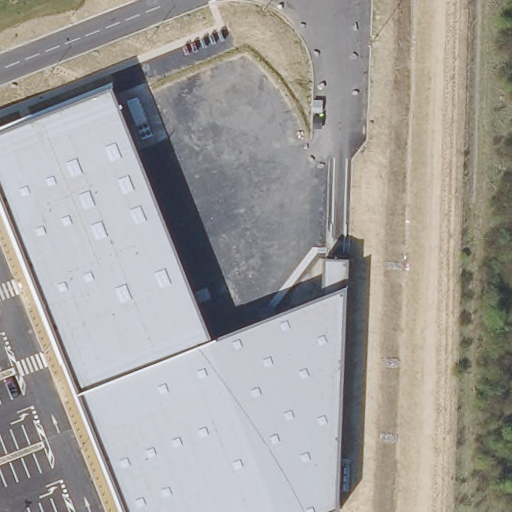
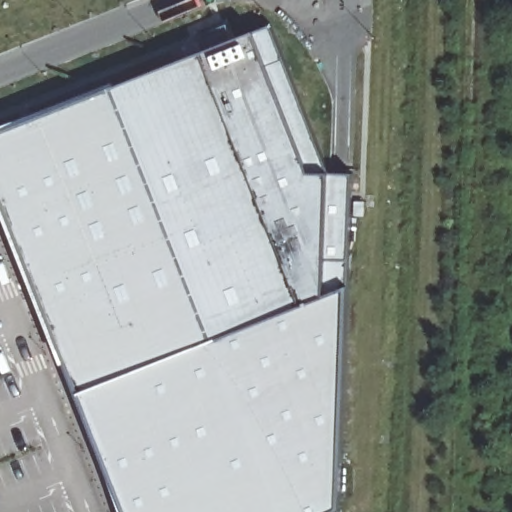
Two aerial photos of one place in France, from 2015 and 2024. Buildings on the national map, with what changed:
new [(254,32),(271,25),(330,173),(323,256),(322,292),(213,336),(206,318),(115,86),(254,32)]
unchanged [(0,127),(113,82),(213,336),(322,292),(323,256),(351,257),(351,286),(340,506),(326,512),(123,512),(0,200),(0,127)]

